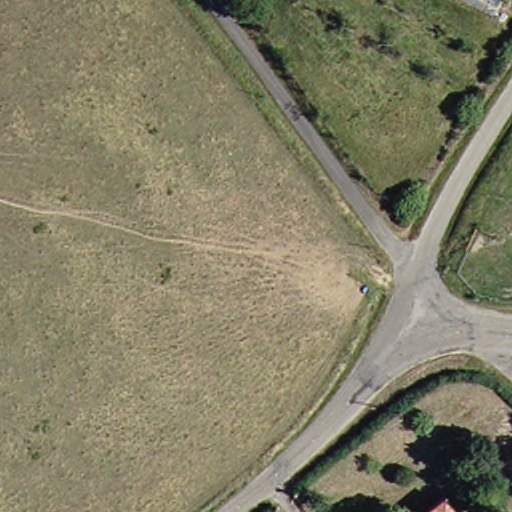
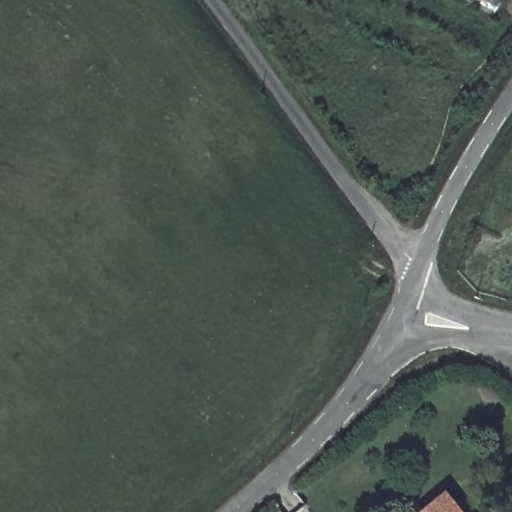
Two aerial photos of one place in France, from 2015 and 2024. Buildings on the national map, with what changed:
unchanged [(469,512),(418,512),(448,485),(469,512)]

